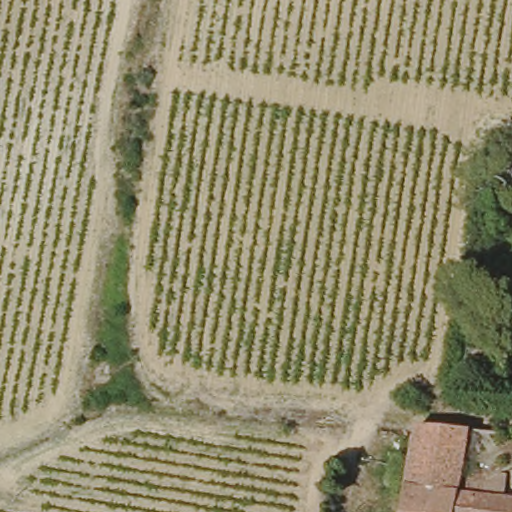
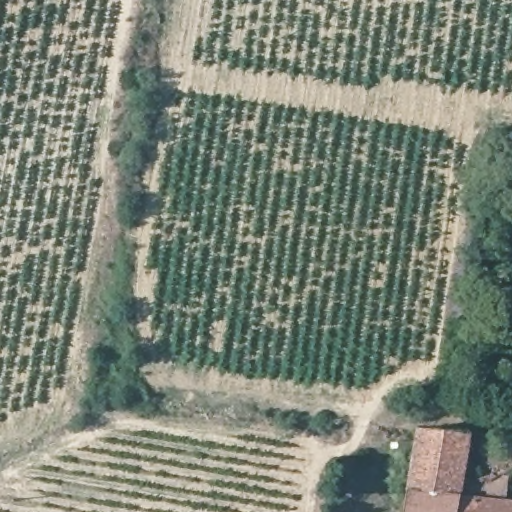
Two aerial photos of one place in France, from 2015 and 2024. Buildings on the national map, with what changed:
unchanged [(490,136),(512,139),(512,183),(484,177),(490,136)]
unchanged [(489,485),(510,478),(505,502),(512,503),(512,512),(405,512),(418,430),(471,435),(464,480),(489,485)]

